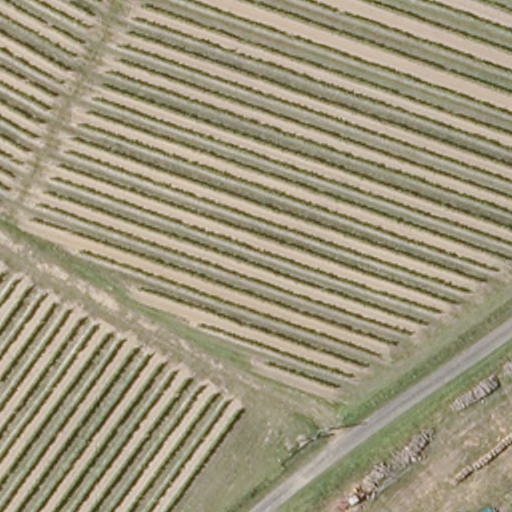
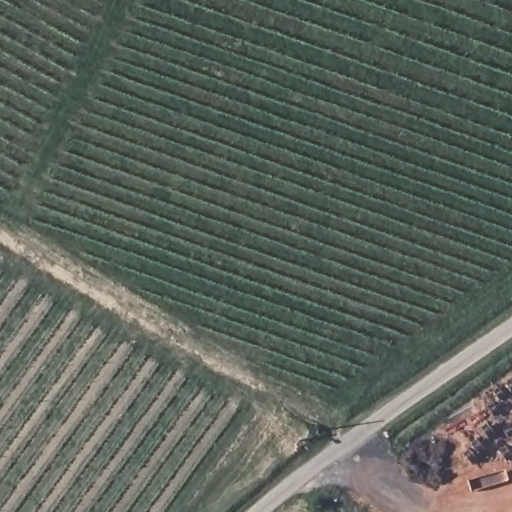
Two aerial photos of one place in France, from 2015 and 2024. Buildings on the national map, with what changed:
[]

